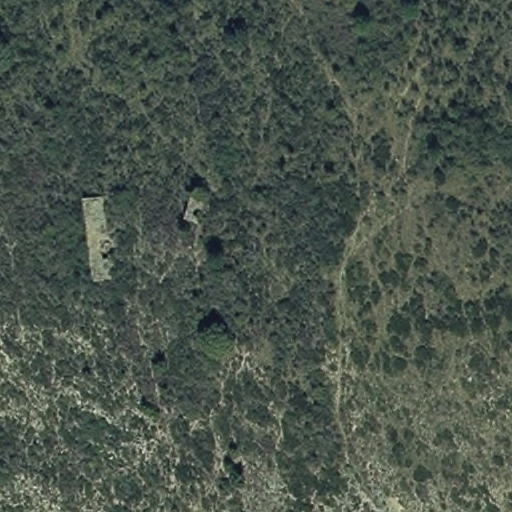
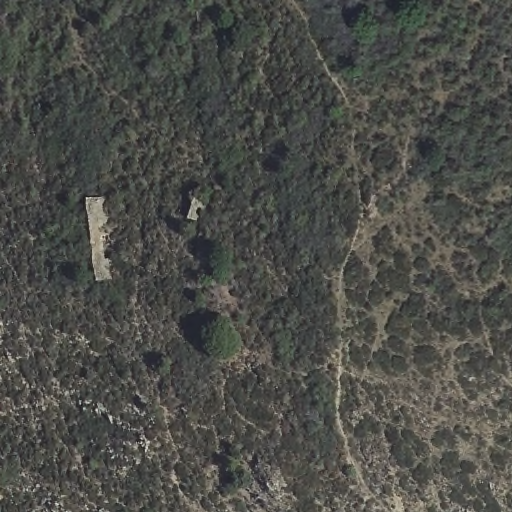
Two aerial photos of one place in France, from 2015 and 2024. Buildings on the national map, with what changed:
unchanged [(191,195),(213,202),(204,223),(184,218),(191,195)]
unchanged [(104,196),(118,276),(93,282),(83,198),(104,196)]

